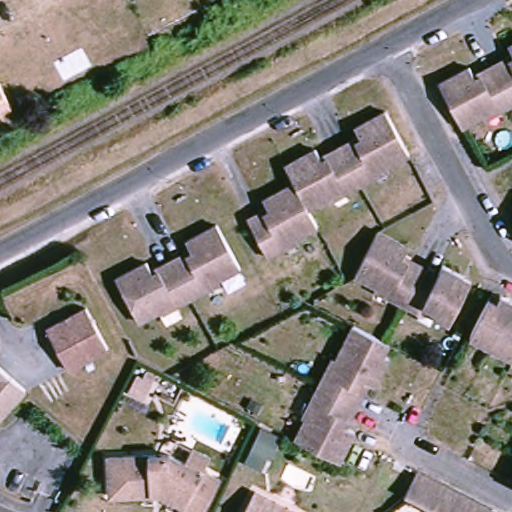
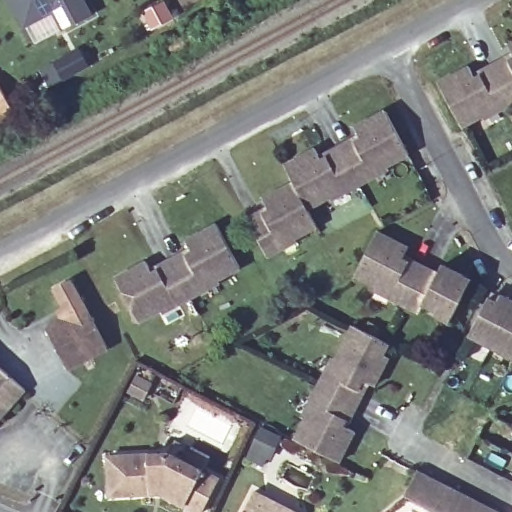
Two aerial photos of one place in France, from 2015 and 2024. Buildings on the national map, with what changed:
new [(86,0),(93,14),(62,30),(52,13),(24,28),(8,0),(86,0)]
unchanged [(508,46),(512,44),(512,52),(508,46)]
unchanged [(469,66),(475,79),(512,60),(512,106),(501,111),(499,106),(463,126),(439,83),(469,66)]
unchanged [(0,114),(0,87),(11,108),(0,114)]
unchanged [(405,158),(369,178),(371,181),(341,197),(339,194),(303,213),(313,232),(276,250),(278,254),(263,261),(244,225),(264,214),(259,202),(289,186),(280,168),(310,153),(316,164),(356,144),(350,131),(382,115),(405,158)]
unchanged [(235,272),(199,290),(201,294),(172,309),(171,307),(134,325),(113,282),(143,266),(149,277),(187,256),(181,244),(212,228),(235,272)]
unchanged [(408,246),(401,258),(436,276),(443,265),(471,280),(449,321),(440,315),(437,306),(426,299),(419,312),(388,296),(390,293),(355,275),(378,231),(408,246)]
unchanged [(485,301),(491,304),(495,297),(512,305),(512,357),(511,357),(509,360),(500,356),(499,350),(478,340),(473,341),(466,338),(472,327),(485,301)]
unchanged [(66,364),(45,324),(84,303),(105,343),(66,364)]
unchanged [(313,407),(309,405),(325,377),(328,378),(353,329),(389,348),(383,359),(388,362),(374,389),(363,384),(358,393),(361,395),(343,429),(354,435),(339,464),(295,442),(313,407)]
unchanged [(0,420),(0,368),(25,391),(0,420)]
unchanged [(128,391),(137,374),(142,377),(146,371),(154,375),(143,398),(128,391)]
unchanged [(200,512),(161,491),(108,493),(107,455),(167,451),(174,438),(207,456),(201,469),(218,477),(200,512)]
unchanged [(418,474),(466,499),(493,512),(433,512),(405,499),(418,474)]
unchanged [(242,507),(251,490),(295,512),(239,512),(242,507)]

